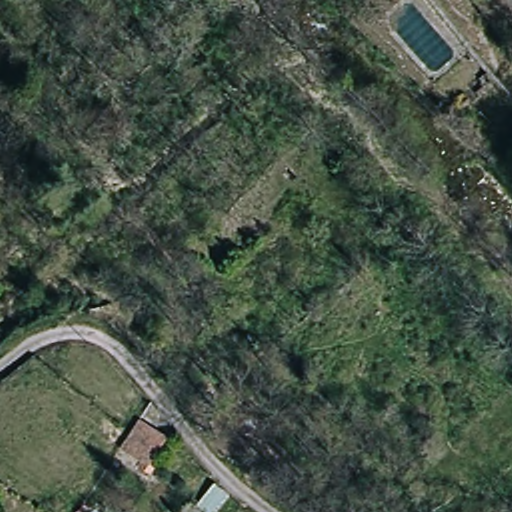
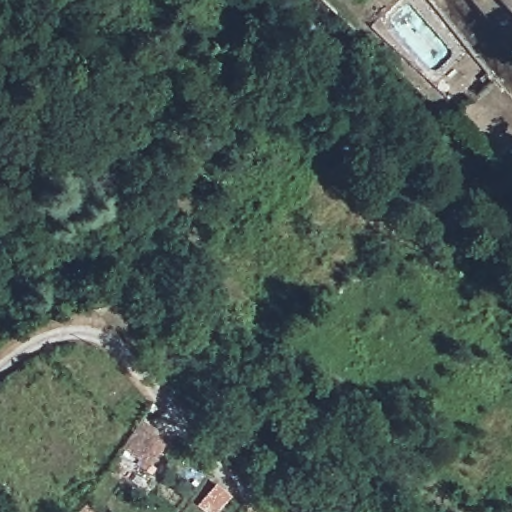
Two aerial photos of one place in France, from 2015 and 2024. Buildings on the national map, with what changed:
unchanged [(146,465),(121,448),(141,419),(166,437),(146,465)]
unchanged [(218,476),(236,487),(221,512),(203,500),(218,476)]

